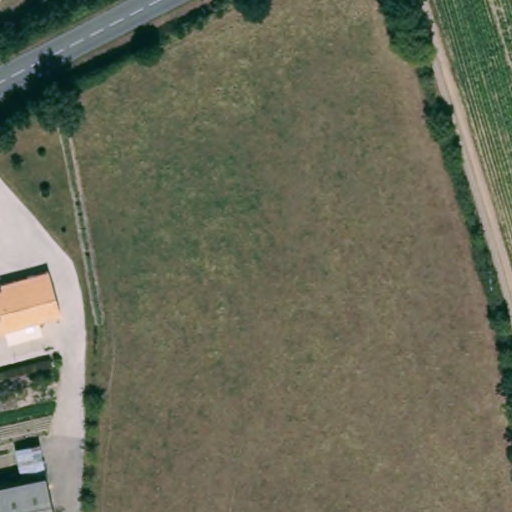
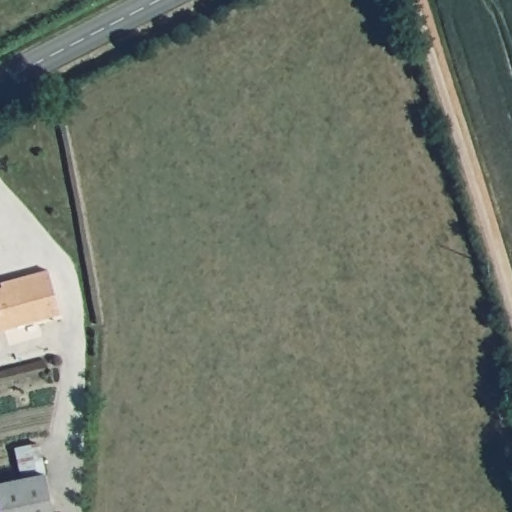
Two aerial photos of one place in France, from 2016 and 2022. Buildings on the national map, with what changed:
unchanged [(0,284),(28,276),(48,270),(61,315),(0,332),(0,284)]
unchanged [(8,512),(0,473),(50,462),(60,512),(8,512)]

